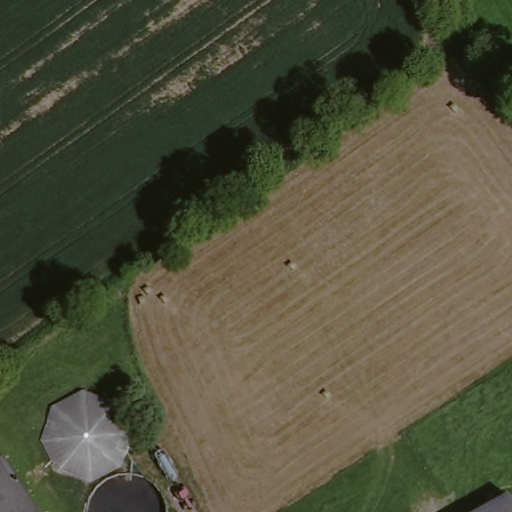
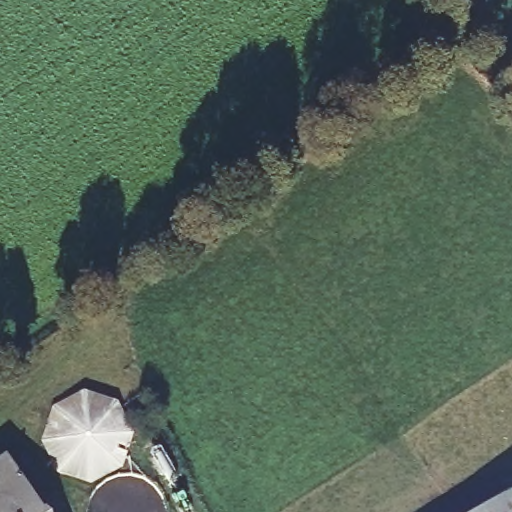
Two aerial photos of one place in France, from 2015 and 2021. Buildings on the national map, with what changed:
unchanged [(102,479),(100,480),(97,481),(95,482),(92,482),(86,482),(80,482),(75,480),(69,478),(64,475),(60,472),(56,467),(52,463),(50,458),(47,452),(47,446),(46,441),(47,435),(47,429),(50,424),(52,419),(56,414),(60,410),(65,407),(70,404),(75,402),(81,400),(86,400),(92,400),(97,401),(103,403),(109,405),(113,409),(117,412),(121,417),(124,422),(126,424),(127,427),(128,433),(129,438),(129,444),(128,450),(126,455),(125,458),(122,463),(119,468),(115,472),(111,475),(106,478),(102,479)]
unchanged [(0,464),(4,462),(37,512),(0,512),(0,464)]
unchanged [(512,504),(512,512),(495,512),(512,504)]

